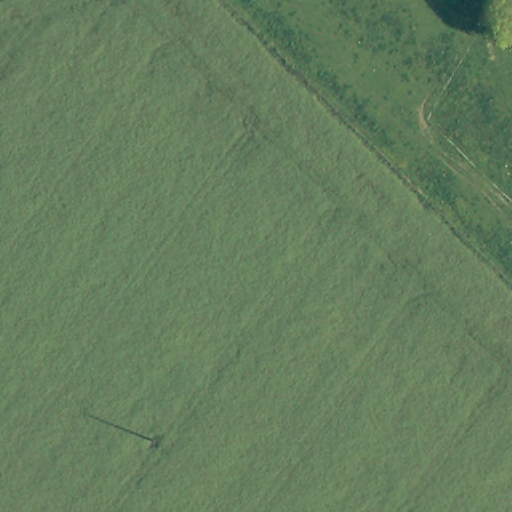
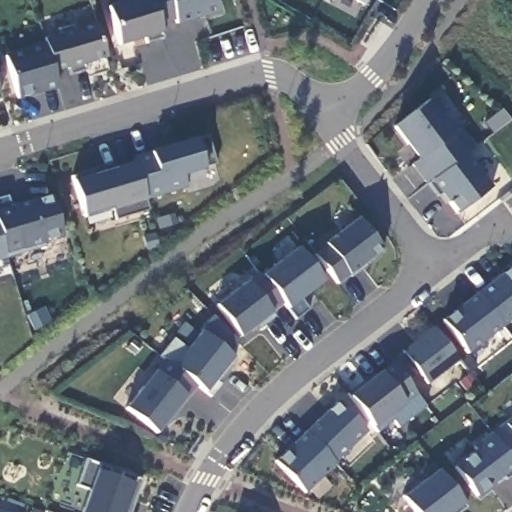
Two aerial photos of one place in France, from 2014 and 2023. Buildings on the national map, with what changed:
new [(108,7),(132,0),(216,0),(220,12),(177,25),(175,20),(160,24),(162,32),(120,47),(108,7)]
new [(5,55),(45,43),(44,38),(99,21),(110,57),(55,74),(59,90),(18,100),(5,55)]
new [(411,165),(418,160),(393,127),(431,99),(455,131),(461,127),(475,146),(427,184),(411,165)]
new [(135,162),(134,156),(149,152),(197,137),(209,135),(217,166),(205,170),(183,176),(185,187),(146,200),(151,212),(116,221),(112,211),(85,219),(74,180),(135,162)]
new [(492,187),(456,215),(447,204),(443,206),(427,184),(466,153),(492,187)]
new [(7,195),(10,206),(52,194),(65,238),(7,255),(0,231),(0,197),(7,195)]
new [(315,254),(327,245),(325,243),(358,217),(383,249),(351,276),(339,284),(315,254)]
new [(7,255),(0,258),(0,231),(7,255)]
new [(247,281),(250,284),(262,275),(298,249),(323,282),(302,298),(310,310),(297,321),(288,309),(285,304),(271,315),(239,337),(215,306),(247,281)]
new [(512,266),(512,320),(469,353),(444,320),(512,266)]
new [(429,384),(403,351),(435,326),(460,360),(429,384)]
new [(155,371),(165,360),(159,355),(172,337),(187,349),(202,332),(234,358),(205,392),(197,385),(184,399),(156,434),(125,407),(155,371)]
new [(399,427),(394,421),(377,432),(375,426),(350,396),(380,371),(392,362),(426,407),(399,427)]
new [(335,463),(336,464),(305,493),(276,461),(339,401),(367,432),(335,463)]
new [(512,460),(491,432),(512,416),(512,460)]
new [(455,467),(476,448),(474,447),(491,432),(512,460),(512,470),(477,496),(455,467)]
new [(80,512),(89,490),(77,485),(87,460),(112,469),(110,477),(121,481),(122,473),(143,479),(130,512),(80,512)]
new [(463,504),(465,507),(459,512),(414,512),(403,497),(438,469),(463,504)]

